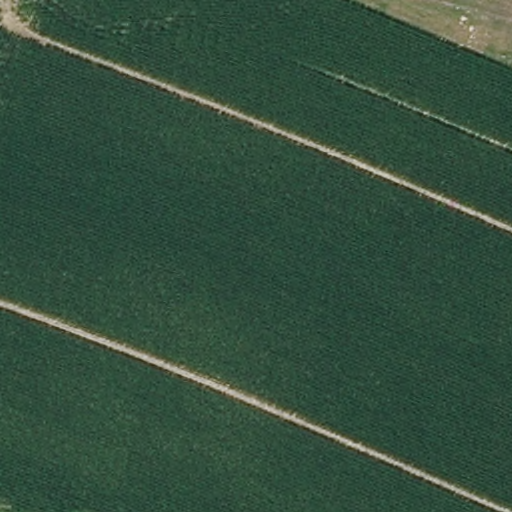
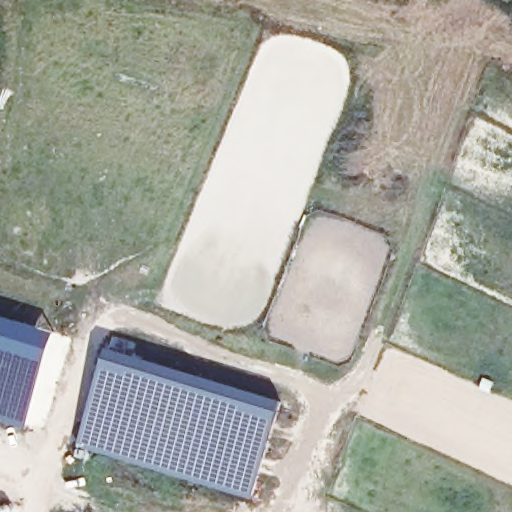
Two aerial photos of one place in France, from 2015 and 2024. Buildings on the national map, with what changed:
new [(30,321),(56,332),(27,423),(26,427),(0,420),(0,312),(30,321)]
new [(56,332),(70,337),(40,427),(27,423),(56,332)]
new [(110,345),(283,397),(254,493),(81,441),(110,345)]

